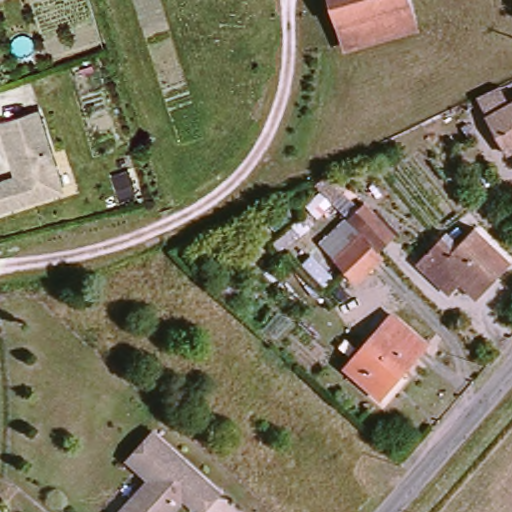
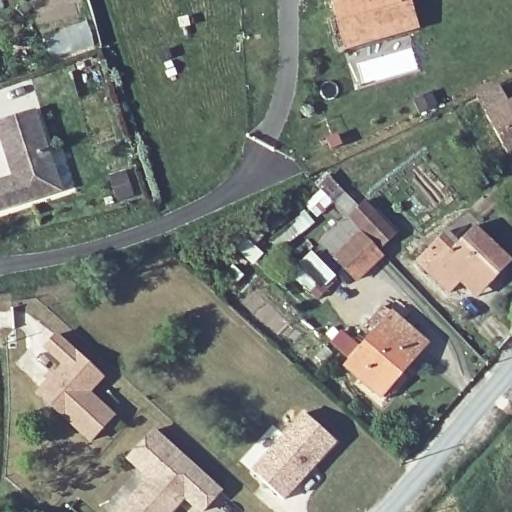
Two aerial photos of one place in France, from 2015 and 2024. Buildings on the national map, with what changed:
unchanged [(337,8),(335,0),(413,0),(413,1),(341,21),(340,16),(337,8)]
unchanged [(341,21),(413,1),(420,30),(348,50),(341,21)]
unchanged [(502,155),(481,119),(512,100),(512,150),(502,155)]
unchanged [(0,212),(0,181),(8,179),(0,151),(0,123),(34,114),(52,176),(57,196),(31,203),(0,212)]
unchanged [(325,190),(322,186),(335,175),(348,192),(336,202),(320,216),(309,203),(325,190)]
unchanged [(368,201),(398,235),(381,250),(388,259),(357,281),(334,257),(338,254),(325,238),(368,201)]
unchanged [(430,254),(438,263),(472,228),(505,262),(472,298),(454,281),(446,292),(415,269),(430,254)]
unchanged [(379,399),(345,369),(390,316),(425,345),(379,399)]
new [(45,347),(56,334),(92,367),(102,376),(89,391),(114,415),(91,441),(37,392),(63,364),(45,347)]
new [(303,410),(338,442),(286,500),(250,467),(303,410)]
unchanged [(154,481),(134,461),(160,433),(225,495),(209,512),(200,512),(184,497),(181,500),(181,509),(178,512),(125,512),(154,481)]

